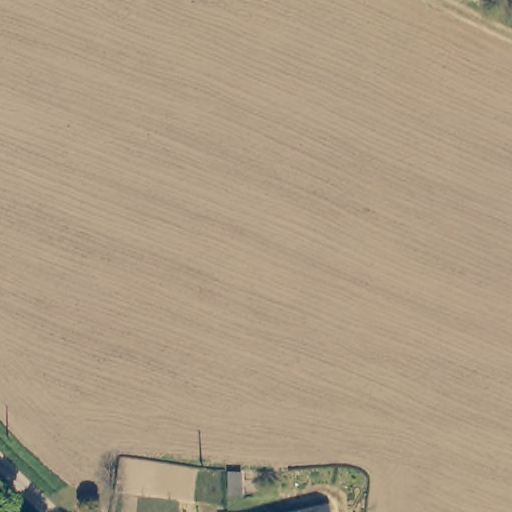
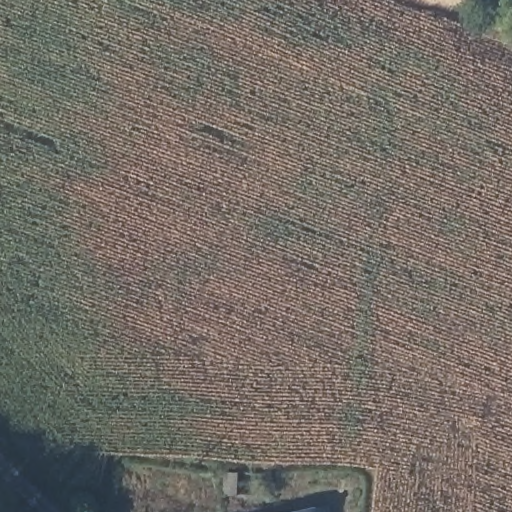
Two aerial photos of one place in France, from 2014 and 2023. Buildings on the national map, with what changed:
unchanged [(329,507),(330,512),(274,512),(311,508),(329,507)]

